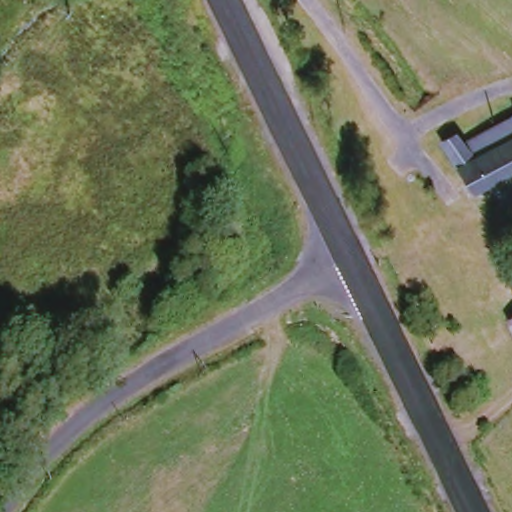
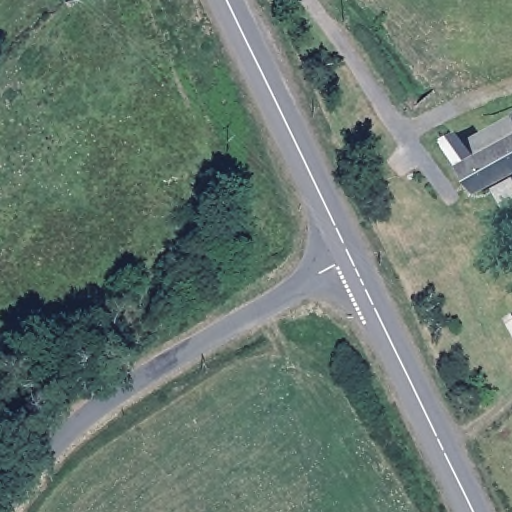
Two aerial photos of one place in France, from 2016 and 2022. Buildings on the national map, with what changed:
unchanged [(512,110),(512,127),(504,115),(512,110)]
unchanged [(439,140),(452,134),(457,142),(479,130),(504,115),(512,127),(512,132),(465,157),(483,186),(480,189),(470,194),(439,140)]
unchanged [(512,132),(512,169),(487,184),(483,186),(465,157),(512,132)]
unchanged [(512,313),(512,325),(507,315),(512,313)]

